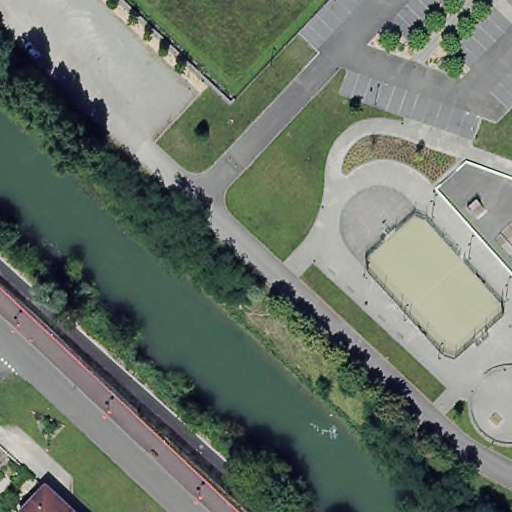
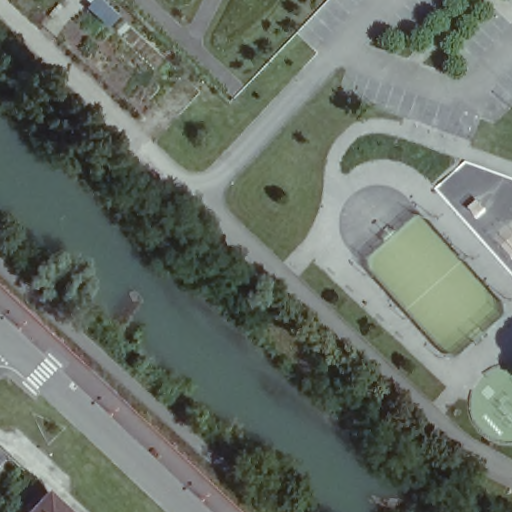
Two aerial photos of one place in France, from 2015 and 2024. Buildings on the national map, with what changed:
unchanged [(70,512),(30,512),(49,492),(70,512)]

